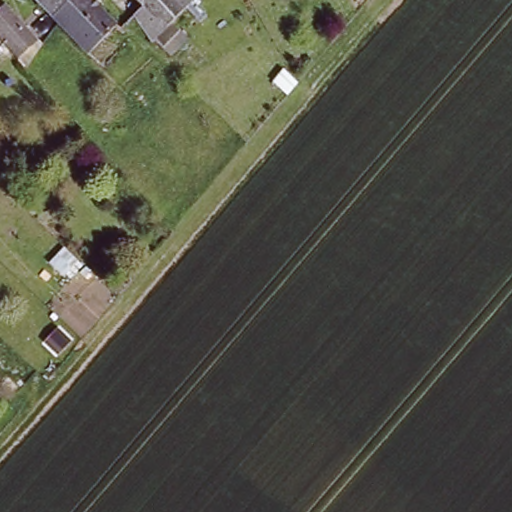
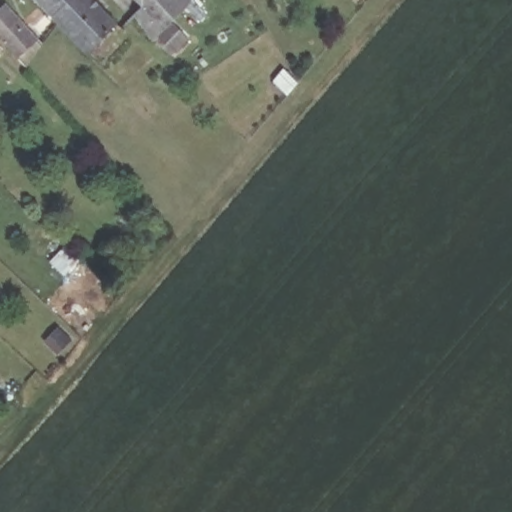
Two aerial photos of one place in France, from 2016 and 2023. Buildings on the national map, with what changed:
unchanged [(82,49),(57,23),(35,0),(89,0),(110,22),(82,49)]
unchanged [(159,37),(155,41),(148,32),(135,14),(140,10),(133,0),(195,0),(197,1),(159,37)]
unchanged [(24,56),(0,30),(0,10),(6,4),(40,41),(24,56)]

